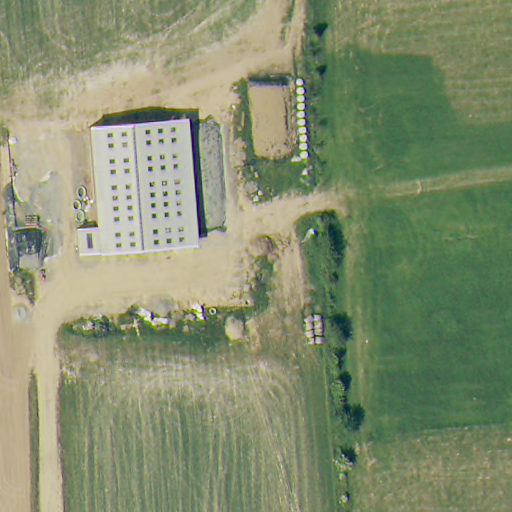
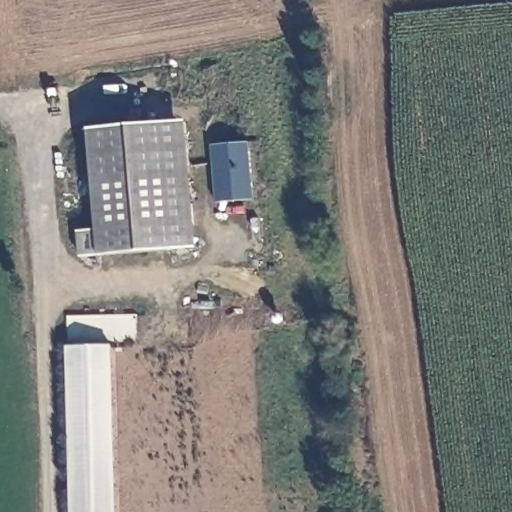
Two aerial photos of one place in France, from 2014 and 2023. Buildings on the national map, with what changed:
unchanged [(185,121),(196,250),(99,257),(78,258),(75,231),(94,229),(87,129),(185,121)]
new [(254,200),(216,202),(211,145),(249,141),(254,200)]
new [(69,512),(65,347),(113,345),(116,512),(69,512)]

